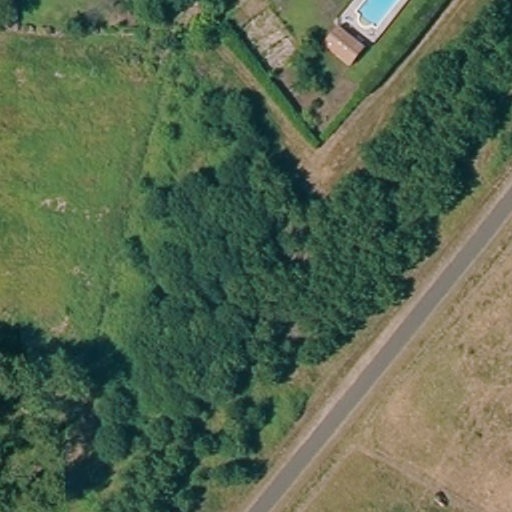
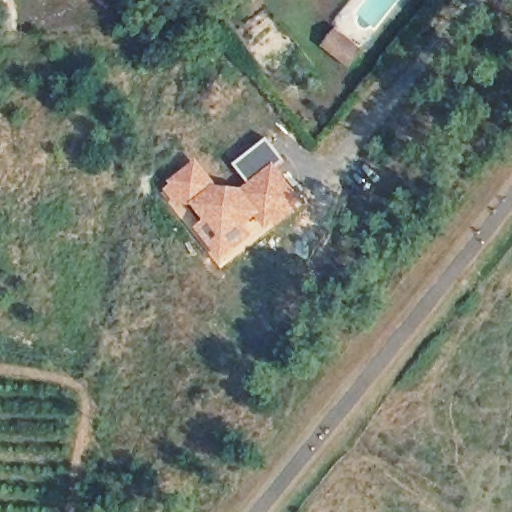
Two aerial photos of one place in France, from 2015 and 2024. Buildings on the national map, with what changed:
unchanged [(367,54),(355,69),(331,50),(342,35),(367,54)]
new [(267,137),(286,161),(279,167),(276,165),(247,184),(232,165),(267,137)]
new [(195,158),(223,186),(224,187),(228,187),(240,187),(247,184),(276,165),(279,167),(306,204),(218,266),(191,230),(202,220),(190,207),(180,216),(159,192),(195,158)]

